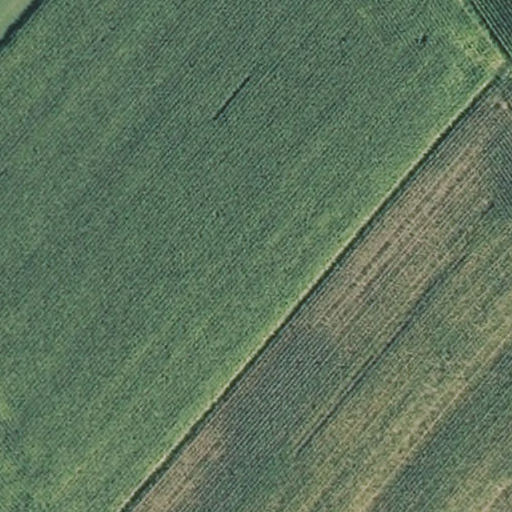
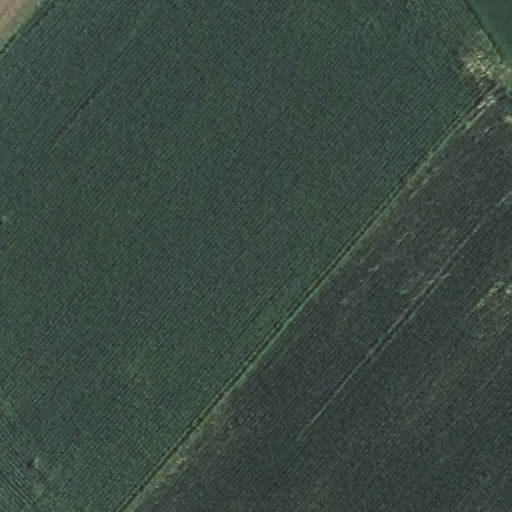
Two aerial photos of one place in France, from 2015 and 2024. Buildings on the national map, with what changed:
[]

